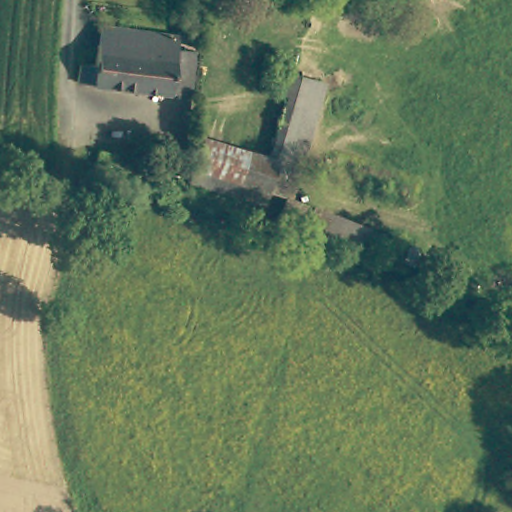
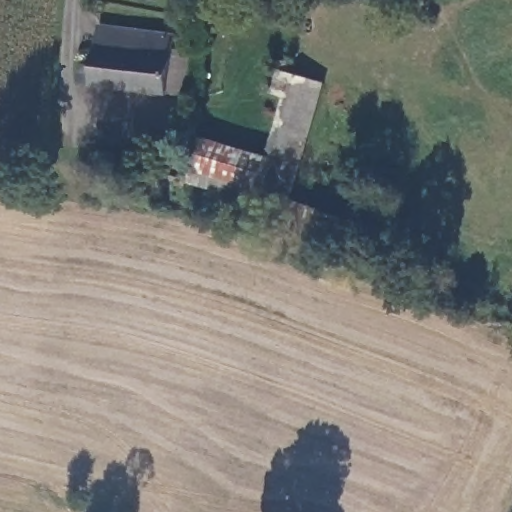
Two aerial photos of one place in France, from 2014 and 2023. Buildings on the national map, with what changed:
unchanged [(177,94),(87,80),(90,61),(100,62),(103,44),(107,21),(185,35),(184,57),(205,60),(198,97),(177,94)]
unchanged [(274,156),(294,90),(280,85),(286,66),(332,80),(305,165),(274,156)]
unchanged [(293,207),(192,175),(205,135),(274,156),(305,165),(293,207)]
unchanged [(367,255),(321,233),(326,205),(381,225),(367,255)]

